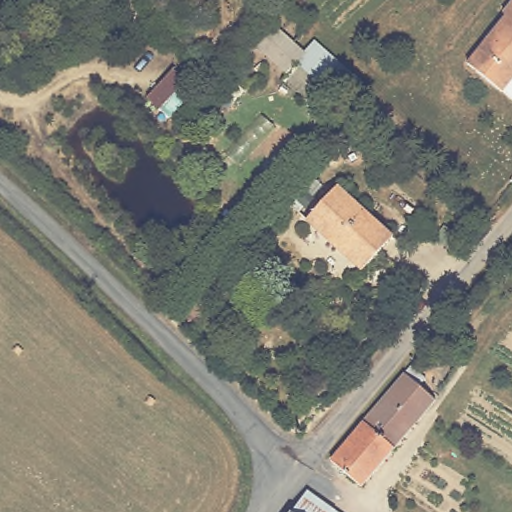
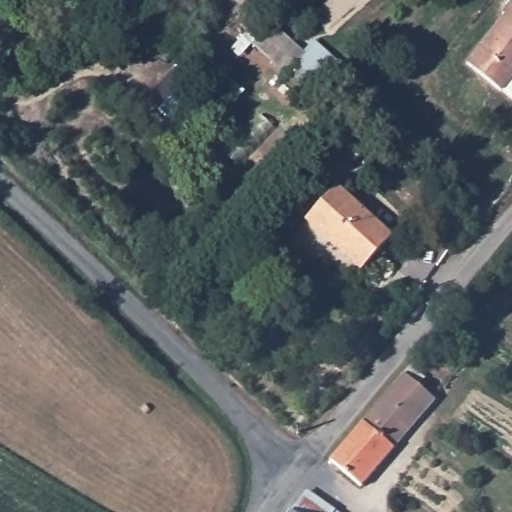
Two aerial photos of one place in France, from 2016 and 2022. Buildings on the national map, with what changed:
unchanged [(509,77),(474,50),(511,5),(507,1),(507,0),(512,0),(512,79),(509,76),(509,77)]
unchanged [(313,89),(276,57),(283,50),(292,40),(328,70),(320,80),(313,89)]
unchanged [(340,189),(395,239),(365,272),(309,221),(340,189)]
unchanged [(412,366),(425,378),(418,386),(435,401),(362,486),(331,461),(412,366)]
unchanged [(340,510),(342,512),(290,512),(307,487),(340,510)]

